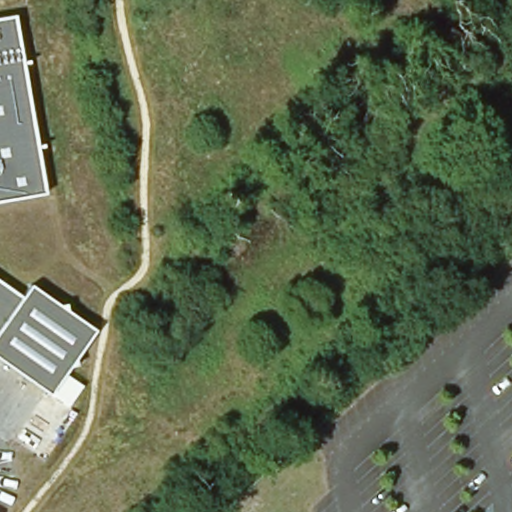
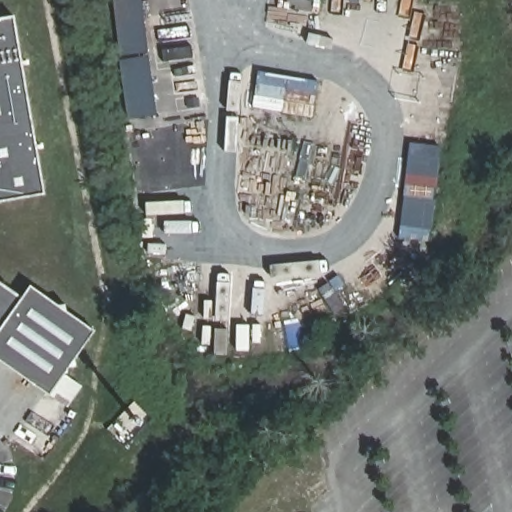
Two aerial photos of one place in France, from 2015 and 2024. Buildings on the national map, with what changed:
new [(127,119),(113,0),(142,0),(156,116),(127,119)]
unchanged [(45,195),(0,202),(0,18),(14,16),(45,195)]
new [(400,238),(409,143),(440,146),(431,241),(400,238)]
unchanged [(30,289),(93,338),(44,401),(0,366),(0,284),(21,301),(30,289)]

